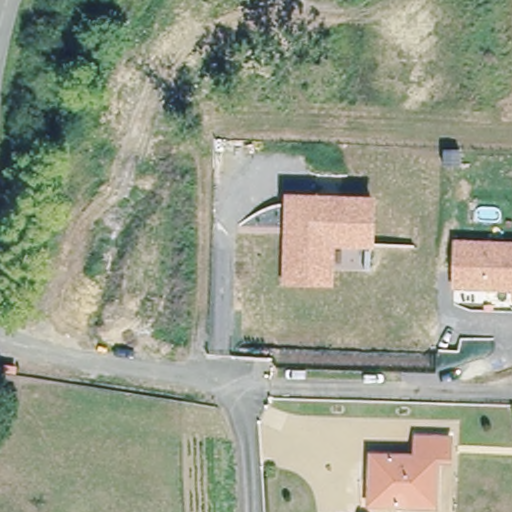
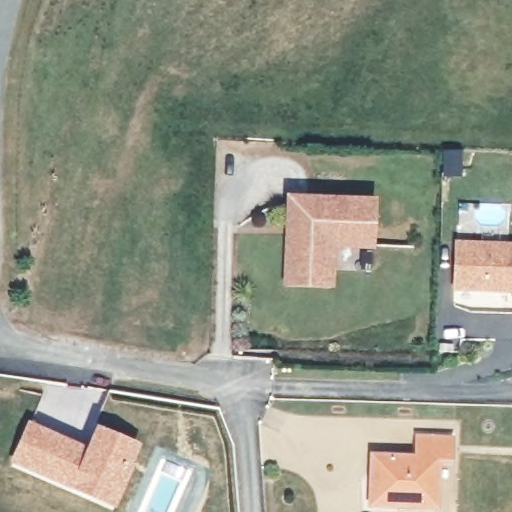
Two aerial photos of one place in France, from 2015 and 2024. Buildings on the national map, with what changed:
unchanged [(377,197),(376,249),(336,248),(334,288),(282,285),(285,194),(377,197)]
unchanged [(459,242),(512,245),(512,290),(457,288),(459,242)]
new [(87,447),(97,424),(140,443),(129,468),(134,471),(117,507),(10,463),(29,420),(87,447)]
unchanged [(439,507),(369,505),(371,453),(414,454),(415,435),(453,437),(452,462),(440,462),(439,507)]

